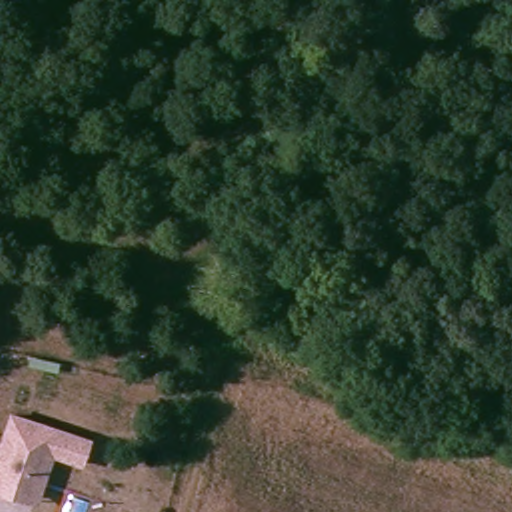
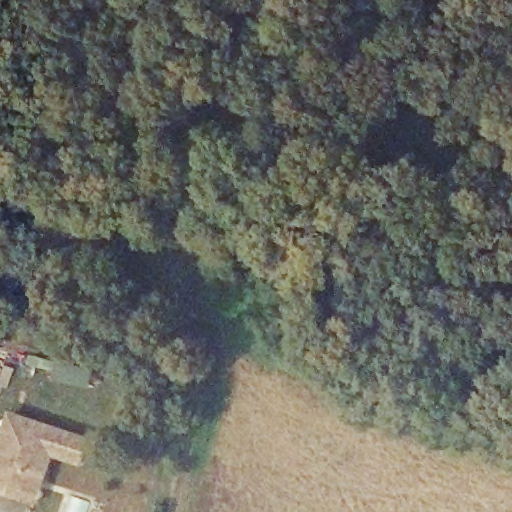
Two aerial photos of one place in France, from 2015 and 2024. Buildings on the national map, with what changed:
unchanged [(83,466),(53,458),(38,502),(0,491),(0,440),(9,411),(91,438),(83,466)]

